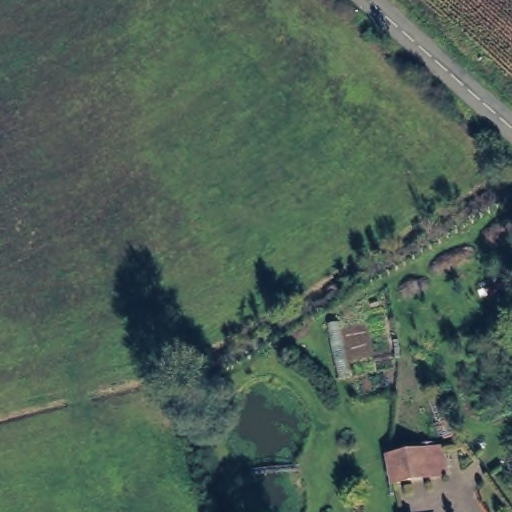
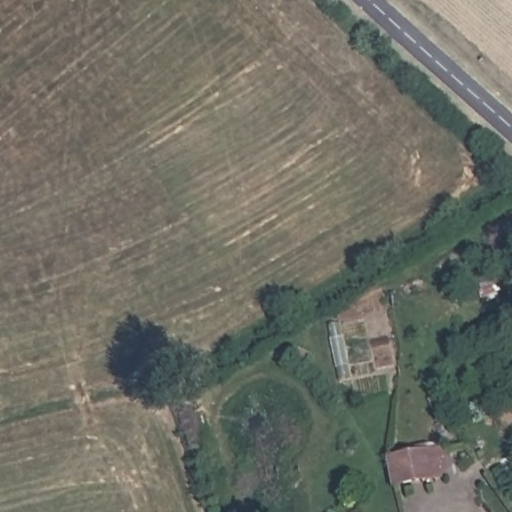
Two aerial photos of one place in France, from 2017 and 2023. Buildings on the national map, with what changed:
unchanged [(438,442),(439,469),(389,479),(383,453),(438,442)]

